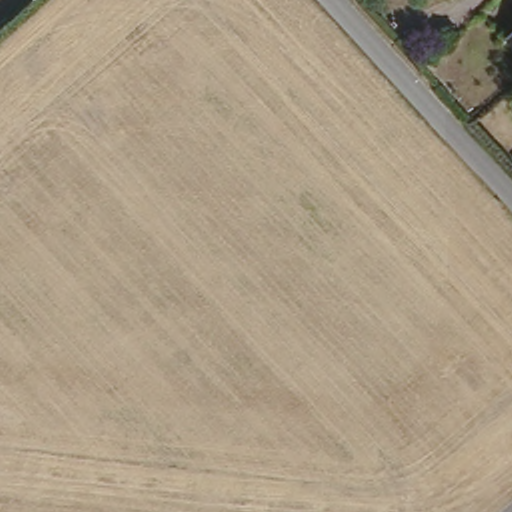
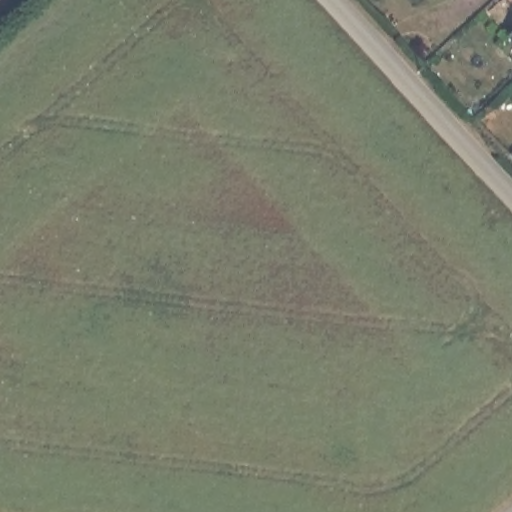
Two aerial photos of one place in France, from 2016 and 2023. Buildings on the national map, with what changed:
unchanged [(508,32),(512,29),(512,38),(508,32)]

